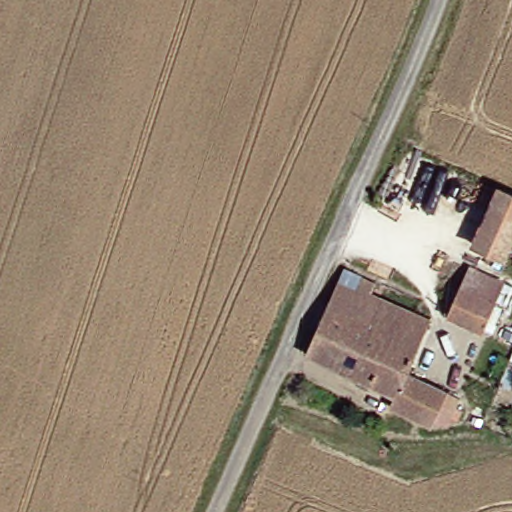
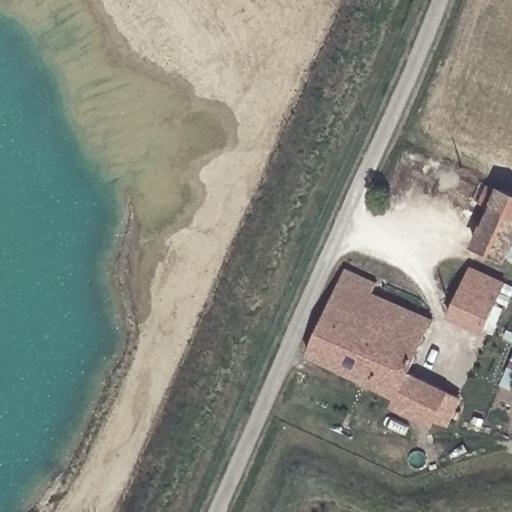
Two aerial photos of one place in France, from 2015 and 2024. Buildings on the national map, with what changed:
unchanged [(481,248),(507,189),(512,191),(512,260),(481,248)]
unchanged [(386,367),(395,341),(321,315),(341,272),(376,289),(372,297),(433,325),(410,378),(386,367)]
unchanged [(473,337),(439,323),(454,291),(452,290),(459,275),(494,291),(487,306),(490,308),(473,337)]
unchanged [(463,413),(457,426),(450,422),(445,430),(435,424),(430,430),(388,412),(391,405),(299,363),(321,315),(395,341),(386,367),(410,378),(459,401),(456,409),(463,413)]

